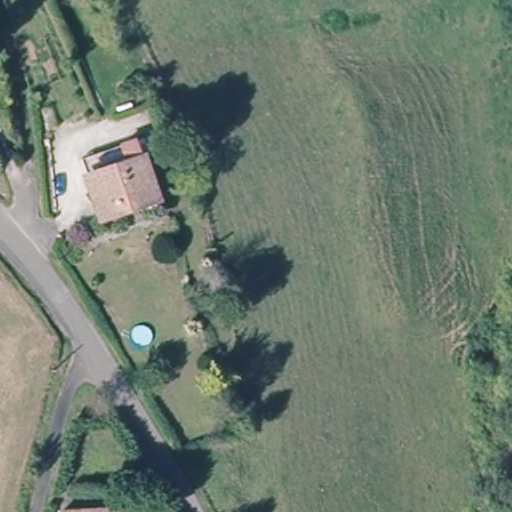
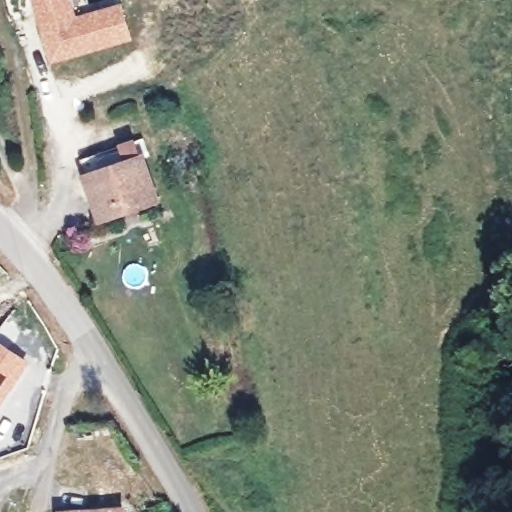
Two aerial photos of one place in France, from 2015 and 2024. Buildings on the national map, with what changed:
new [(122,2),(133,38),(50,63),(31,0),(73,0),(77,15),(122,2)]
unchanged [(151,200),(100,218),(91,176),(86,157),(107,150),(137,141),(151,200)]
new [(0,407),(0,340),(31,361),(0,407)]
unchanged [(67,510),(126,503),(127,512),(68,512),(67,510)]

